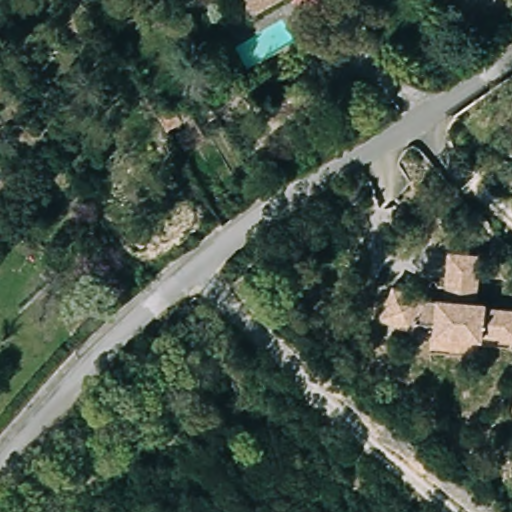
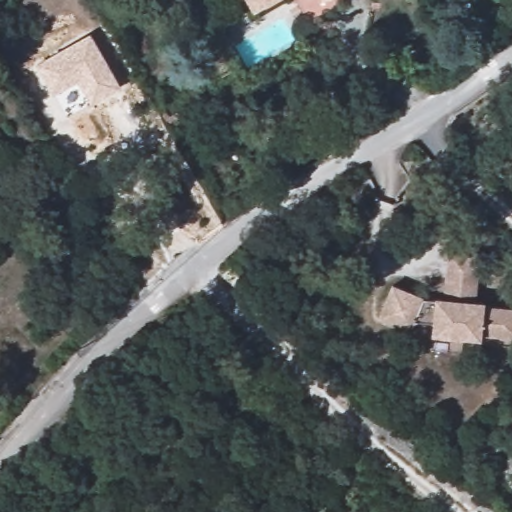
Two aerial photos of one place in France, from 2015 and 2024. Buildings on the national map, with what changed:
unchanged [(244,0),(275,0),(252,13),(244,0)]
new [(90,33),(121,86),(91,104),(78,80),(53,95),(35,64),(90,33)]
unchanged [(162,115),(185,100),(211,139),(187,154),(162,115)]
unchanged [(425,304),(437,306),(437,303),(445,303),(449,256),(482,259),(478,306),(486,307),(486,312),(512,314),(512,344),(483,342),(483,347),(433,342),(434,329),(418,327),(414,337),(380,323),(394,290),(426,303),(425,304)]

